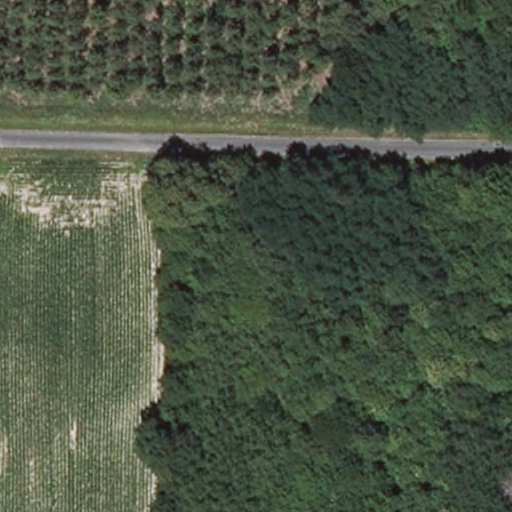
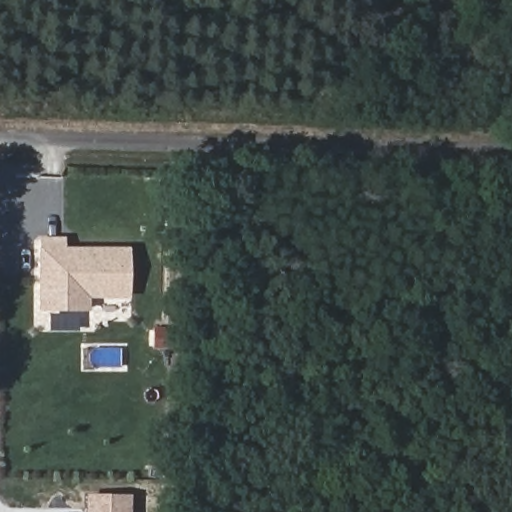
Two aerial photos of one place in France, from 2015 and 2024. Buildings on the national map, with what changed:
new [(127,296),(88,296),(88,309),(40,309),(40,248),(41,239),(62,240),(62,248),(128,248),(127,296)]
new [(130,494),(130,512),(84,512),(84,493),(130,494)]

